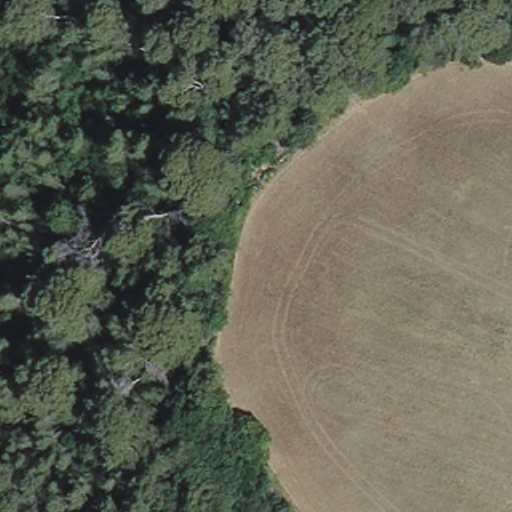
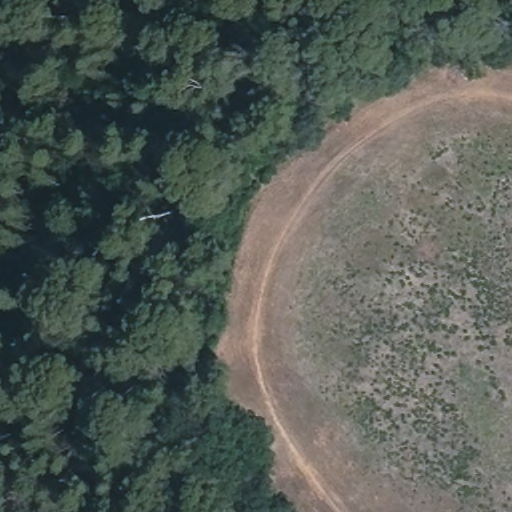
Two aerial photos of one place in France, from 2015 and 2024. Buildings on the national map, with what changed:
[]

